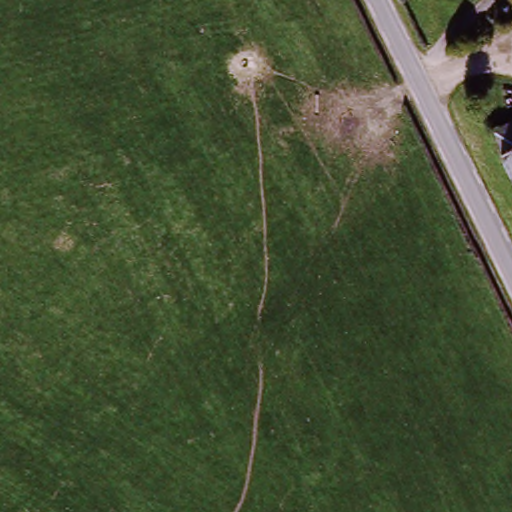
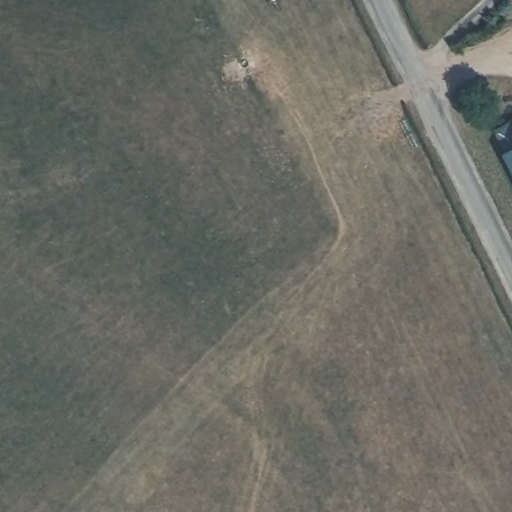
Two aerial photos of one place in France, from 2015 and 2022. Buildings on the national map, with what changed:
unchanged [(504,168),(511,164),(500,141),(512,135),(512,183),(504,168)]

